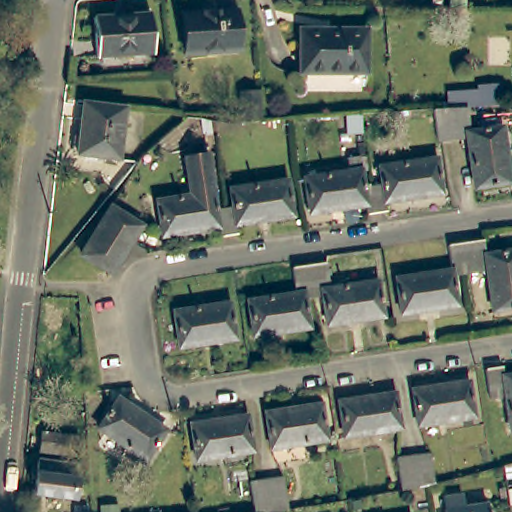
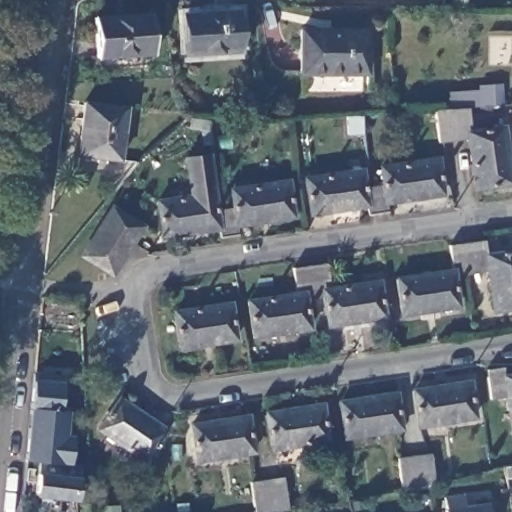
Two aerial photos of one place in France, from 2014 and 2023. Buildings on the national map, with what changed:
unchanged [(153,55),(97,61),(94,21),(150,16),(153,55)]
unchanged [(245,57),(192,61),(190,21),(242,17),(245,57)]
unchanged [(373,78),(307,80),(306,35),(372,34),(373,78)]
unchanged [(497,111),(472,114),(444,116),(441,96),(494,92),(497,111)]
unchanged [(241,129),(241,102),(257,102),(257,128),(241,129)]
unchanged [(119,165),(78,159),(85,107),(126,113),(119,165)]
unchanged [(510,189),(476,194),(469,143),(449,146),(441,147),(436,116),(444,116),(447,116),(472,114),(473,117),(473,116),(476,136),(502,132),(510,189)]
unchanged [(374,187),(381,185),(379,168),(435,160),(439,195),(385,203),(386,214),(378,215),(374,187)]
unchanged [(220,245),(218,235),(163,244),(158,207),(192,202),(188,165),(209,162),(216,216),(225,214),(229,243),(220,245)]
unchanged [(367,217),(365,206),(311,215),(306,180),(360,171),(363,187),(374,187),(378,215),(367,217)]
unchanged [(232,196),(288,187),(292,222),(238,232),(239,242),(229,243),(225,214),(234,212),(232,196)]
unchanged [(108,282),(79,262),(111,214),(140,233),(108,282)]
unchanged [(483,237),(486,252),(512,248),(512,306),(494,308),(488,267),(466,271),(462,240),(483,237)]
unchanged [(451,242),(462,240),(466,271),(456,272),(460,302),(405,310),(400,276),(455,267),(451,242)]
unchanged [(326,264),(330,290),(377,283),(382,318),(327,326),(323,298),(313,300),(309,267),(326,264)]
unchanged [(248,303),(297,296),(294,269),(309,267),(313,300),(304,301),(308,329),(253,337),(248,303)]
unchanged [(174,320),(229,311),(233,346),(178,354),(174,320)]
unchanged [(485,370),(502,367),(504,377),(512,376),(512,433),(511,433),(506,397),(489,400),(485,370)]
new [(60,410),(67,411),(65,436),(72,436),(71,466),(24,462),(30,378),(63,382),(60,410)]
unchanged [(476,421),(421,429),(416,396),(471,387),(476,421)]
unchanged [(403,432),(347,440),(342,407),(398,398),(403,432)]
unchanged [(307,437),(309,452),(281,456),(273,439),(269,408),(325,400),(330,433),(307,437)]
unchanged [(161,435),(141,464),(96,431),(116,402),(161,435)]
unchanged [(255,453),(200,462),(195,428),(250,421),(255,453)]
demolished [(78,460),(46,455),(47,439),(80,443),(78,460)]
unchanged [(431,456),(435,486),(426,488),(419,490),(403,493),(398,461),(415,458),(431,456)]
unchanged [(76,503),(39,497),(43,467),(81,472),(76,503)]
unchanged [(272,478),(290,476),(295,511),(284,512),(260,512),(256,481),(272,478)]
unchanged [(470,512),(450,512),(449,504),(469,502),(470,512)]
unchanged [(493,512),(470,512),(493,510),(493,512)]

